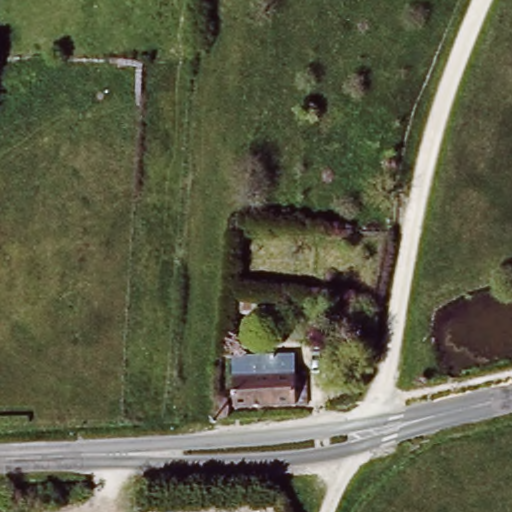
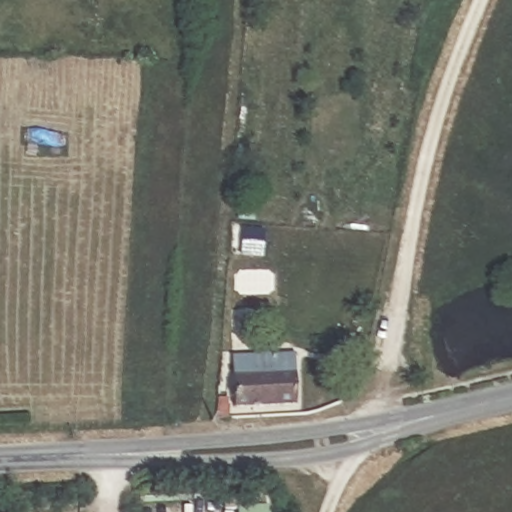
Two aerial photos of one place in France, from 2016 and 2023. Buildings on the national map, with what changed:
unchanged [(215,421),(216,400),(230,400),(231,363),(293,364),(292,408),(232,409),(231,421),(215,421)]

